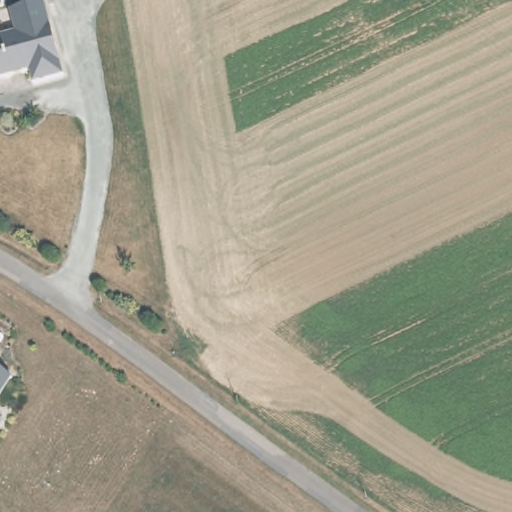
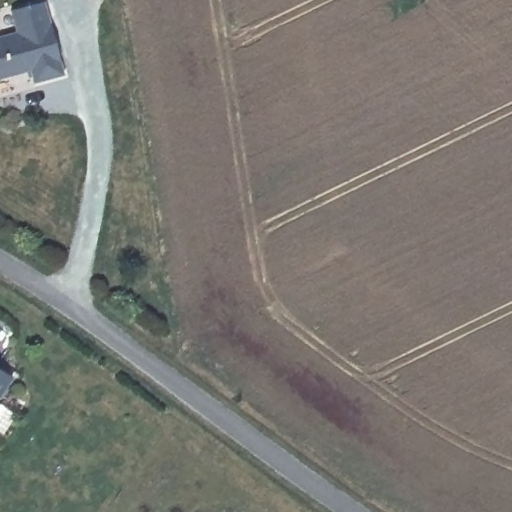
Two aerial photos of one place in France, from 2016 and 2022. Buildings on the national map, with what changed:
unchanged [(33,86),(30,73),(0,81),(0,39),(16,34),(10,14),(44,4),(64,77),(33,86)]
unchanged [(12,377),(0,397),(0,370),(12,377)]

